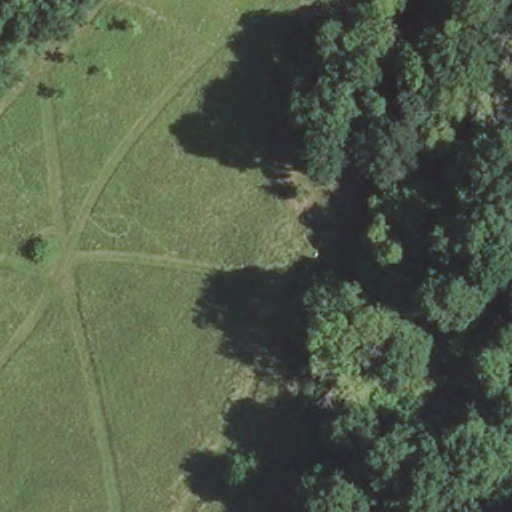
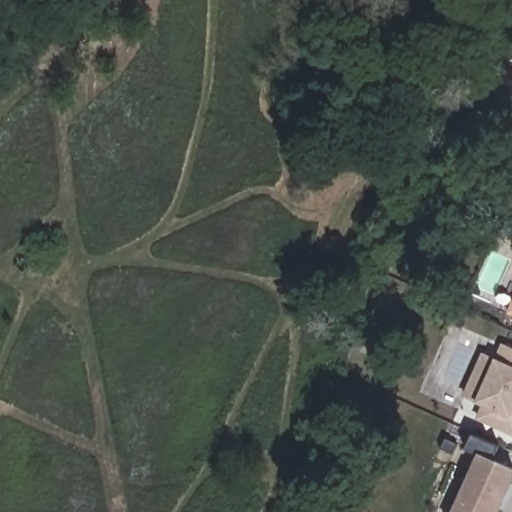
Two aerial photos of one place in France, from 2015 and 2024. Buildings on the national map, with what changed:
new [(505,313),(512,299),(512,316),(505,313)]
new [(474,420),(480,405),(462,397),(481,352),(494,357),(500,343),(512,348),(512,435),(474,420)]
new [(498,512),(451,512),(478,451),(512,467),(512,480),(498,512)]

